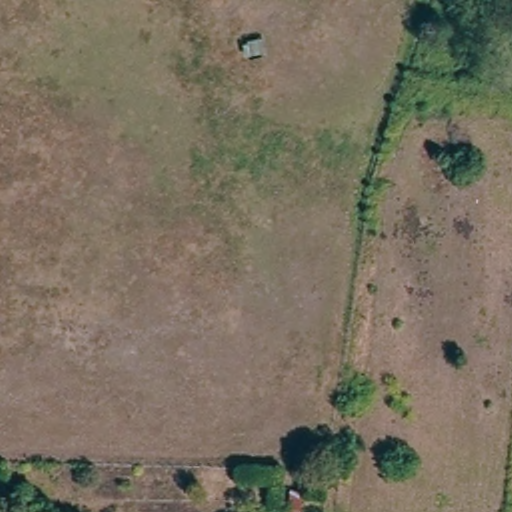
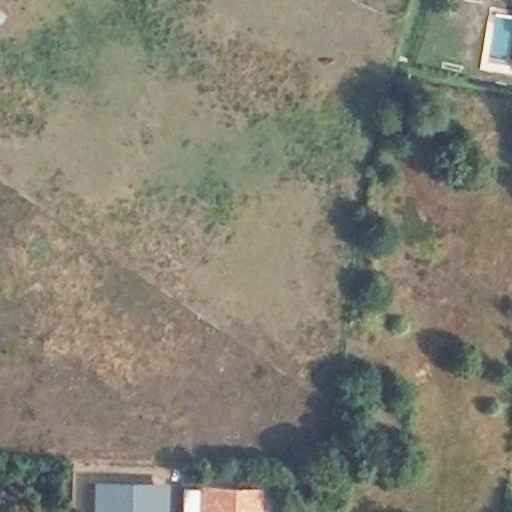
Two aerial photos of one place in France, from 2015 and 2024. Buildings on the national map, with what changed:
new [(90,479),(163,481),(162,512),(89,512),(90,479)]
new [(258,512),(179,512),(179,484),(195,483),(260,485),(258,512)]

